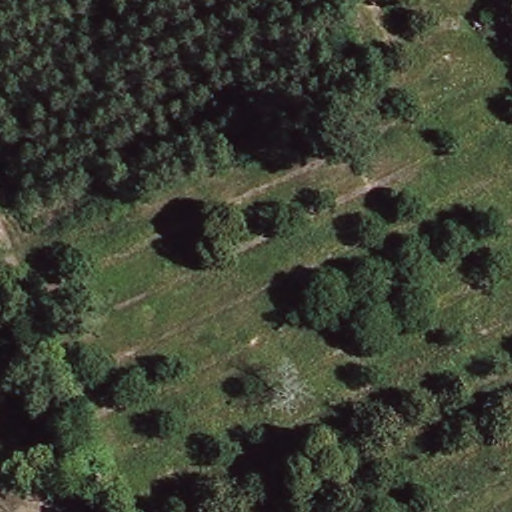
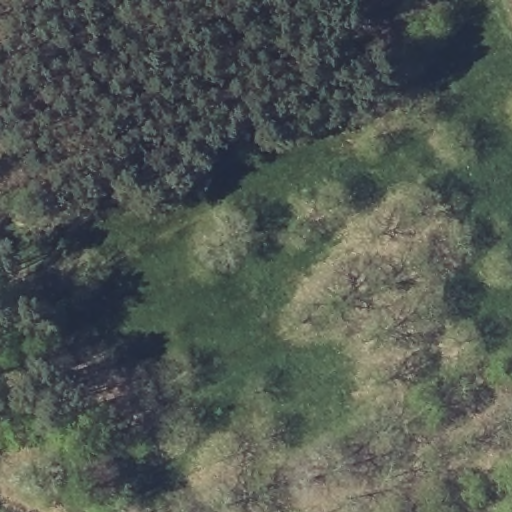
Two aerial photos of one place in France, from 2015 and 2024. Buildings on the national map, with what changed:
[]

